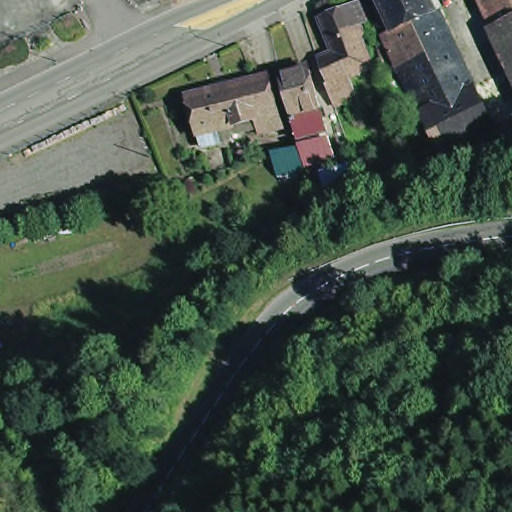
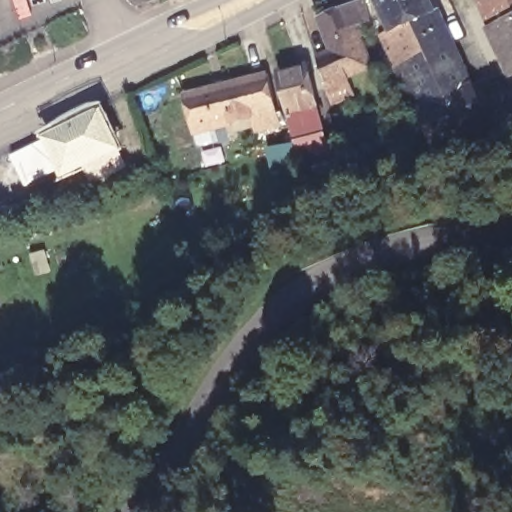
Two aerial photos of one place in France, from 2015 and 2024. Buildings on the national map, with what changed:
unchanged [(334,103),(329,87),(333,85),(321,58),(336,50),(323,19),(353,6),(369,0),(371,0),(376,19),(365,24),(371,34),(366,36),(379,66),(353,76),(359,94),(334,103)]
unchanged [(432,0),(439,13),(436,14),(401,31),(399,29),(386,0),(432,0)]
unchanged [(512,0),(512,21),(504,25),(492,0),(512,0)]
unchanged [(436,14),(451,45),(437,51),(402,68),(387,35),(399,29),(401,31),(436,14)]
unchanged [(512,44),(504,25),(512,21),(512,44)]
unchanged [(437,51),(451,45),(472,88),(422,110),(402,68),(437,51)]
unchanged [(296,135),(291,114),(281,71),(311,64),(321,107),(326,128),(296,135)]
unchanged [(190,94),(251,79),(272,74),(281,113),(284,124),(259,130),(257,118),(219,127),(223,141),(201,145),(198,131),(190,94)]
unchanged [(472,88),(473,90),(490,125),(439,149),(422,110),(472,88)]
new [(38,140),(36,135),(83,108),(103,103),(126,152),(61,181),(57,173),(25,188),(8,155),(38,140)]
unchanged [(505,134),(496,138),(489,119),(512,111),(512,143),(509,144),(505,134)]
unchanged [(329,139),(333,157),(303,164),(299,145),(329,139)]
unchanged [(296,146),(301,170),(276,174),(273,151),(296,146)]

